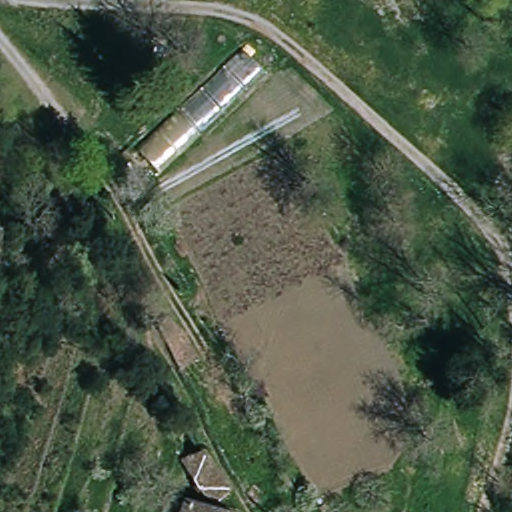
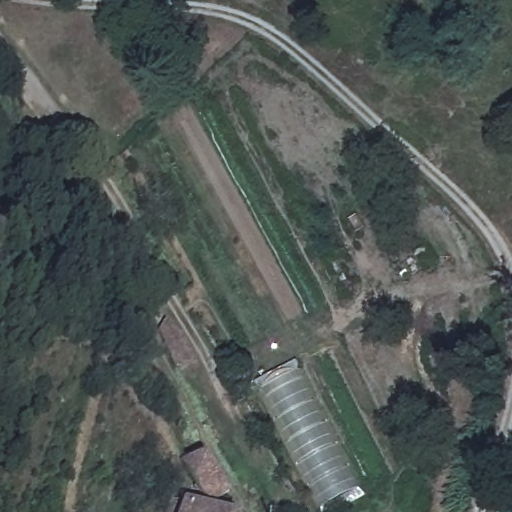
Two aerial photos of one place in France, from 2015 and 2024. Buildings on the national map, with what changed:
unchanged [(262,70),(158,171),(139,151),(242,52),(262,70)]
new [(357,487),(322,506),(261,387),(297,368),(357,487)]
unchanged [(232,490),(223,506),(205,496),(198,491),(184,470),(210,452),(232,490)]
unchanged [(185,502),(213,512),(180,512),(185,502)]

